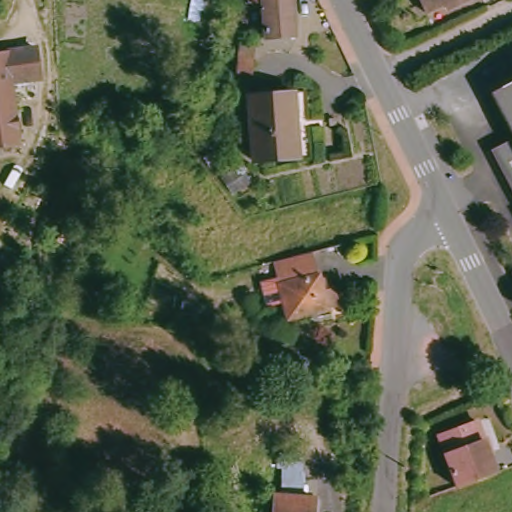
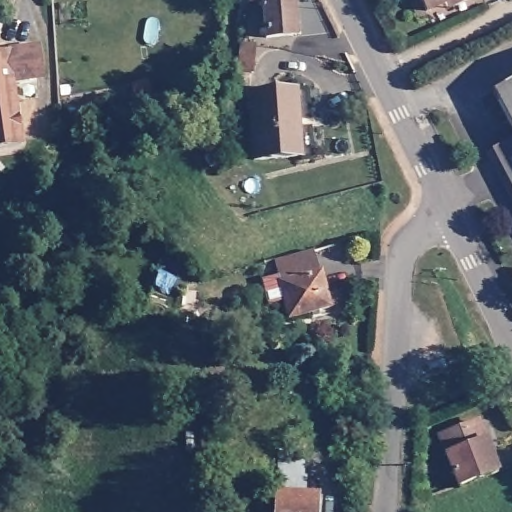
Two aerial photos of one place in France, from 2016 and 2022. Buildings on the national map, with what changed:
unchanged [(262,44),(260,5),(245,6),(245,0),(288,0),(290,41),(262,44)]
unchanged [(442,0),(422,10),(417,0),(442,0)]
unchanged [(252,72),(240,70),(243,45),(255,47),(252,72)]
unchanged [(35,78),(8,80),(16,144),(0,147),(0,52),(32,49),(35,78)]
unchanged [(489,89),(512,78),(512,136),(489,89)]
unchanged [(250,95),(296,93),(300,156),(254,159),(250,95)]
unchanged [(498,145),(512,138),(512,194),(495,158),(490,149),(498,145)]
unchanged [(310,249),(323,308),(282,317),(270,260),(310,249)]
unchanged [(435,431),(473,418),(491,470),(453,483),(435,431)]
unchanged [(266,494),(305,496),(305,512),(265,512),(266,494)]

